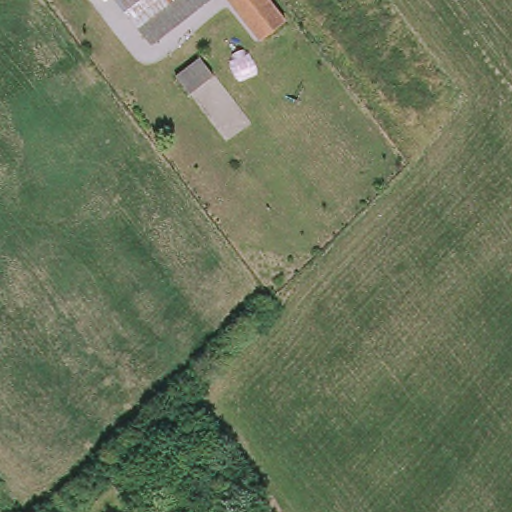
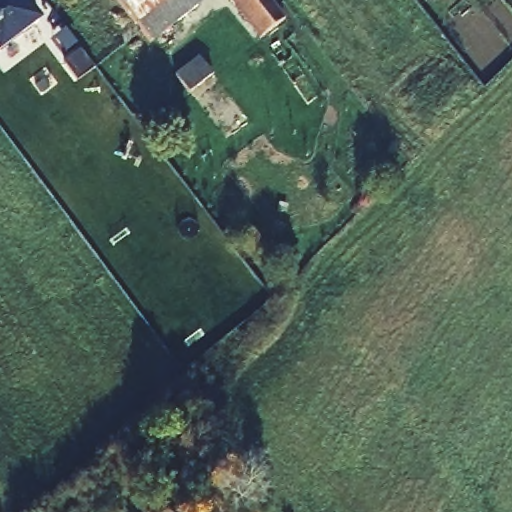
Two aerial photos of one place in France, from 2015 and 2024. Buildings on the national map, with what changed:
new [(42,22),(0,54),(0,0),(25,0),(42,22)]
unchanged [(150,41),(118,0),(204,0),(150,41)]
unchanged [(284,20),(260,38),(231,0),(269,0),(284,20)]
unchanged [(202,56),(215,76),(190,92),(176,73),(202,56)]

